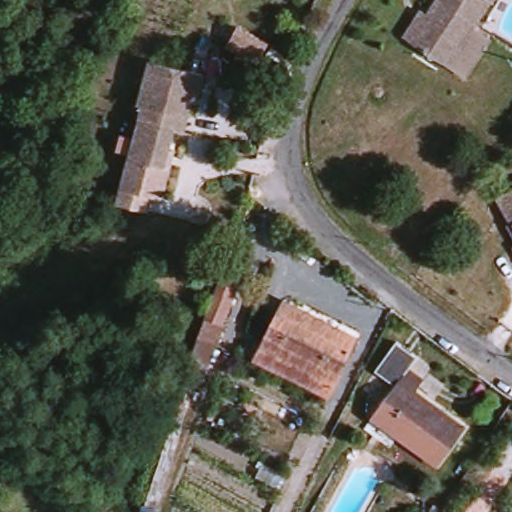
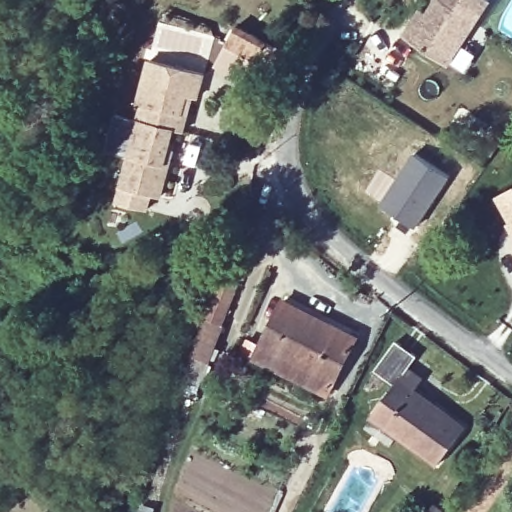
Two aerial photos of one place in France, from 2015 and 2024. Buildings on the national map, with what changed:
unchanged [(424,9),(430,0),(484,0),(468,24),(445,59),(411,36),(401,30),(418,5),(424,9)]
unchanged [(274,41),(265,62),(232,47),(242,25),(274,41)]
unchanged [(170,167),(162,199),(155,197),(152,212),(124,206),(120,205),(140,115),(142,107),(141,107),(138,106),(148,63),(149,63),(201,75),(196,100),(186,97),(182,115),(187,116),(183,133),(173,131),(165,166),(170,167)]
new [(414,152),(451,175),(417,225),(380,201),(414,152)]
unchanged [(512,193),(512,204),(507,196),(512,193)]
unchanged [(238,252),(257,258),(220,360),(200,352),(238,252)]
unchanged [(360,337),(356,345),(337,383),(268,353),(289,305),(342,330),(360,337)]
unchanged [(446,452),(438,448),(382,413),(401,384),(384,375),(403,341),(419,350),(404,379),(458,412),(467,417),(446,452)]
unchanged [(446,492),(454,496),(444,512),(432,512),(446,492)]
unchanged [(415,511),(417,512),(414,512),(415,511)]

